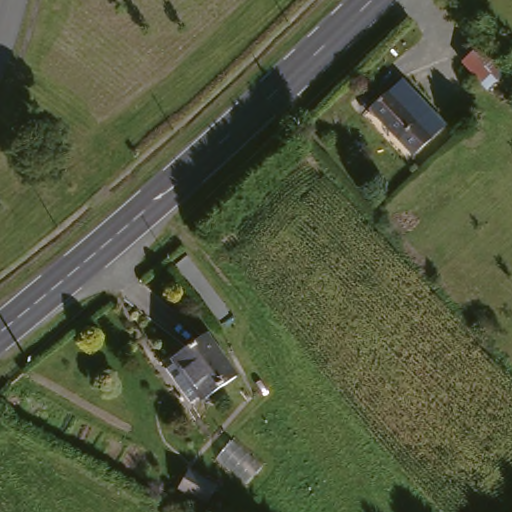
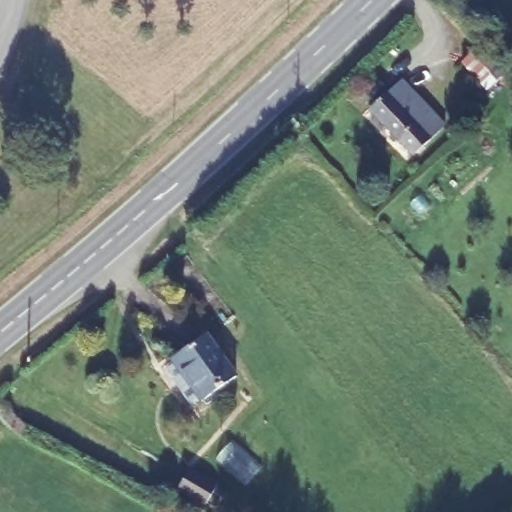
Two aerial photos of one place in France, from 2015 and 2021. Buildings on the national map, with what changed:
unchanged [(481,103),(467,87),(456,75),(477,56),(489,69),(503,84),(481,103)]
unchanged [(406,167),(392,151),(362,117),(396,89),(426,122),(439,137),(406,167)]
unchanged [(232,383),(200,410),(167,371),(199,345),(232,383)]
unchanged [(217,495),(208,512),(204,512),(180,499),(189,480),(217,495)]

